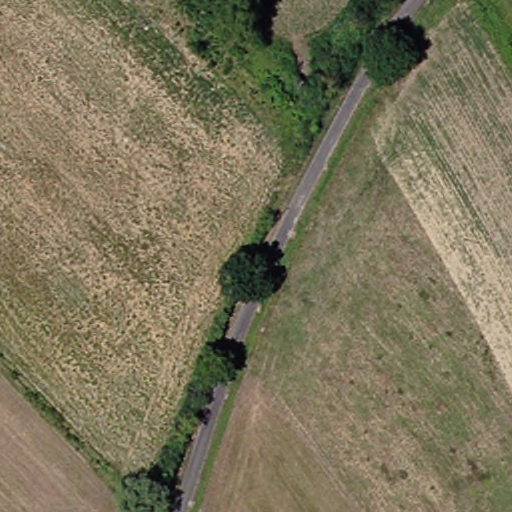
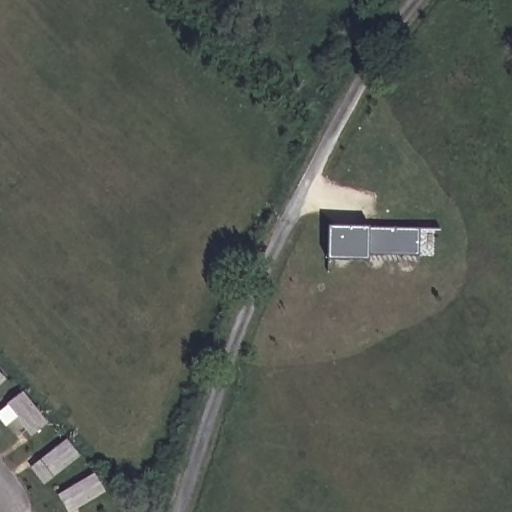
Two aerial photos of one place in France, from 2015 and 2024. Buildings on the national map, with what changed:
new [(424,256),(374,255),(374,262),(333,262),(333,228),(425,228),(424,256)]

